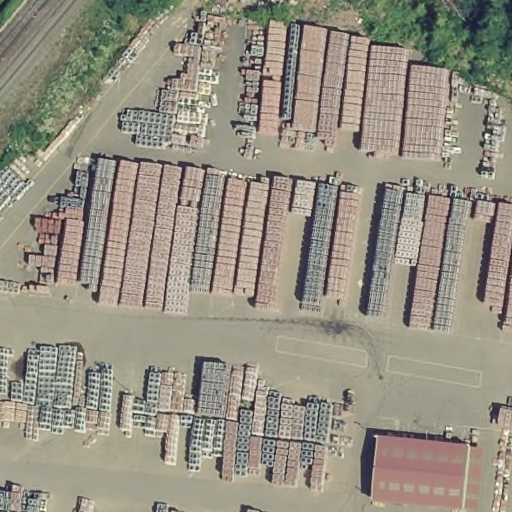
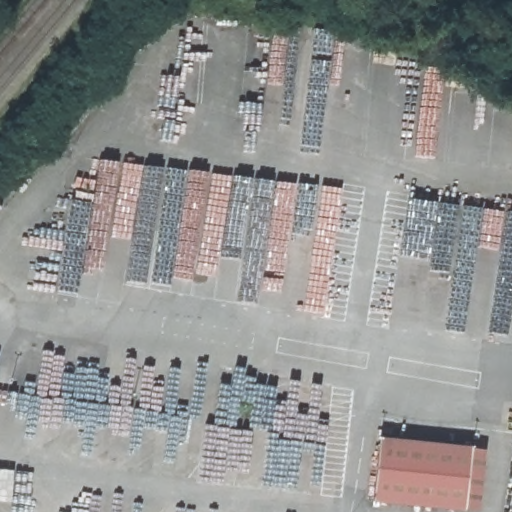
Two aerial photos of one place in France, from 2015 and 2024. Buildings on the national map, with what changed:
unchanged [(482,450),(475,512),(421,512),(368,505),(377,436),(482,450)]

